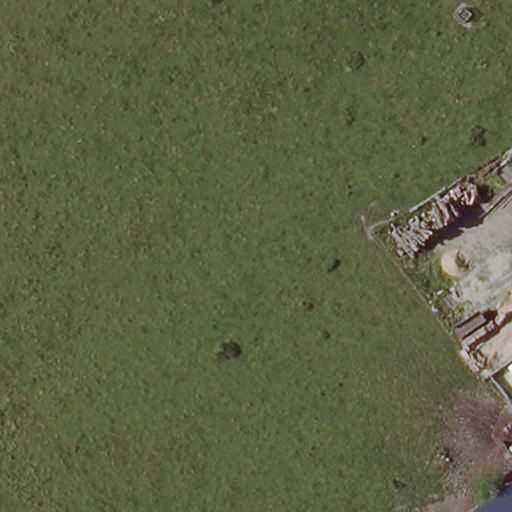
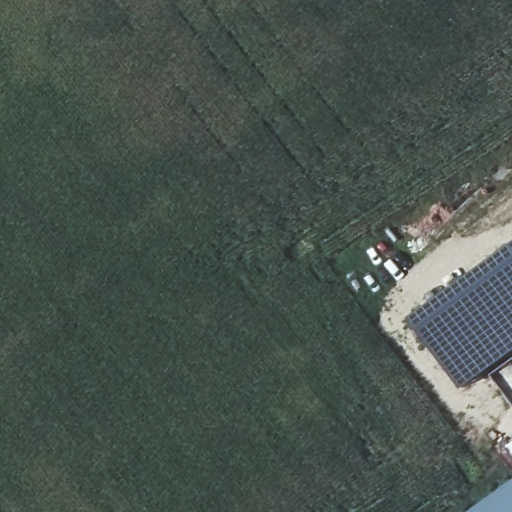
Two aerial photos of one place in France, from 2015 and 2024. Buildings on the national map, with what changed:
new [(512,241),(512,359),(461,391),(409,318),(512,241)]
unchanged [(472,512),(512,482),(512,512),(472,512)]

